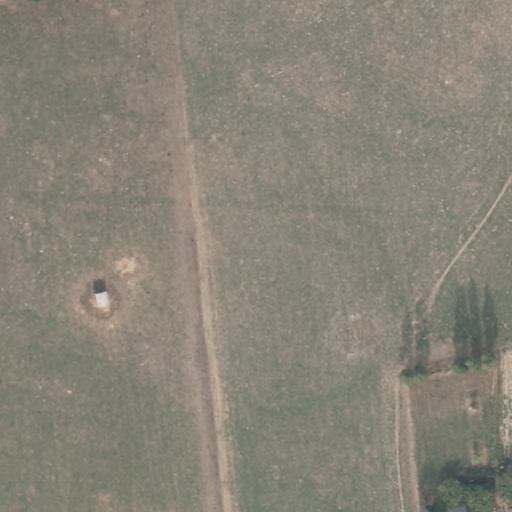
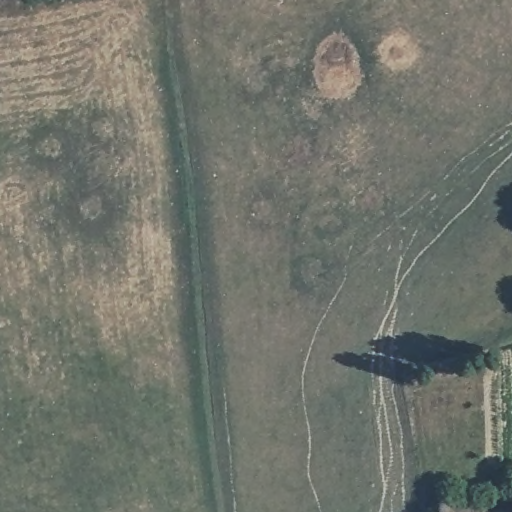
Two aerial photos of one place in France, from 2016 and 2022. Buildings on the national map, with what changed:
unchanged [(510,486),(512,487),(512,501),(510,486)]
unchanged [(476,504),(475,512),(449,512),(449,503),(458,503),(476,504)]

